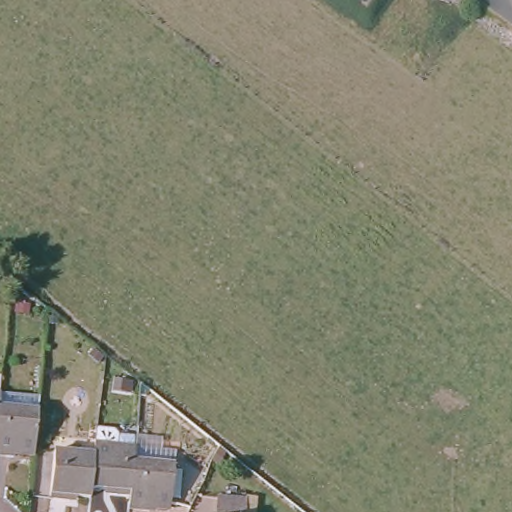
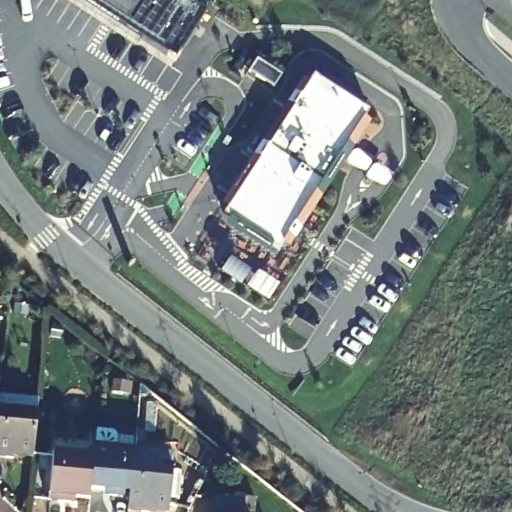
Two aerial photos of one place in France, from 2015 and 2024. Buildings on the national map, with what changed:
new [(163,92),(40,0),(186,0),(218,24),(163,92)]
new [(371,110),(276,251),(213,202),(308,66),(371,110)]
new [(98,366),(90,360),(97,352),(104,357),(98,366)]
unchanged [(14,455),(13,460),(0,459),(0,389),(40,392),(35,455),(14,455)]
unchanged [(96,454),(98,443),(136,446),(133,496),(109,495),(109,487),(94,486),(96,454)]
unchanged [(136,446),(169,448),(166,503),(149,502),(148,511),(131,509),(133,496),(136,446)]
unchanged [(94,486),(93,496),(71,495),(70,502),(49,501),(51,451),(96,454),(94,486)]
new [(175,467),(173,495),(167,495),(168,467),(175,467)]
unchanged [(213,493),(240,494),(240,512),(213,512),(213,493)]

